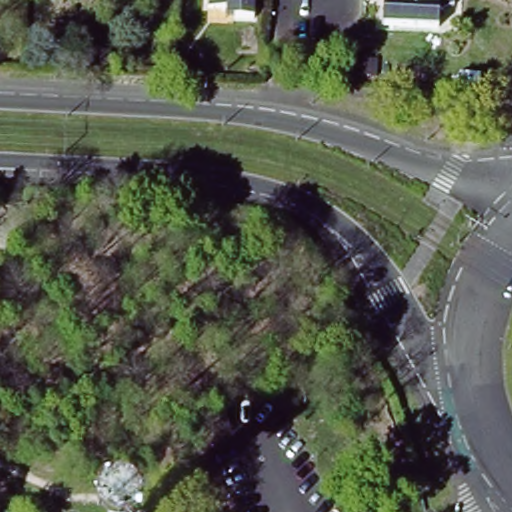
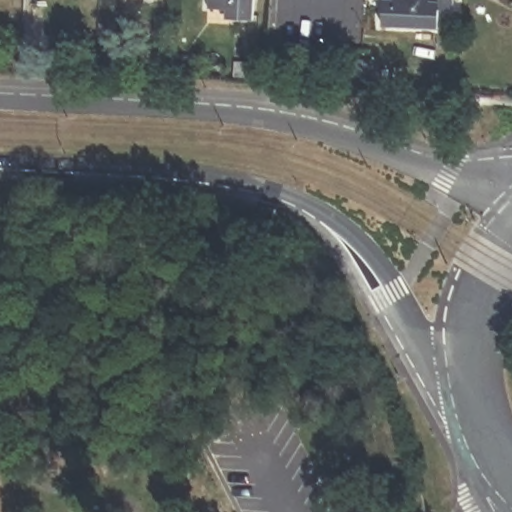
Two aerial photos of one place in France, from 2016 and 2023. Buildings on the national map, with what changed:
unchanged [(212,10),(212,0),(257,0),(256,22),(237,21),(229,20),(230,11),(212,10)]
unchanged [(456,0),(455,6),(443,13),(441,31),(386,28),(387,8),(387,0),(396,0),(456,0)]

